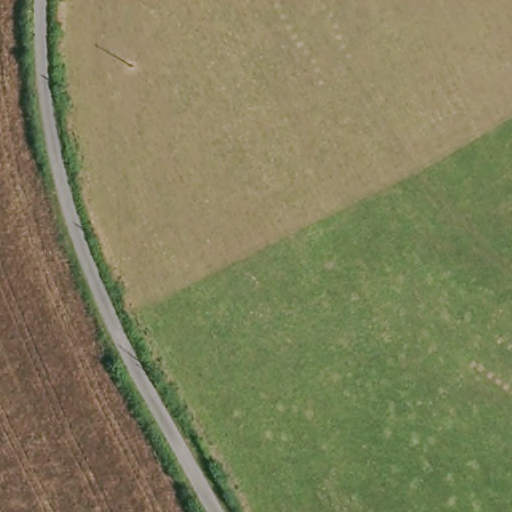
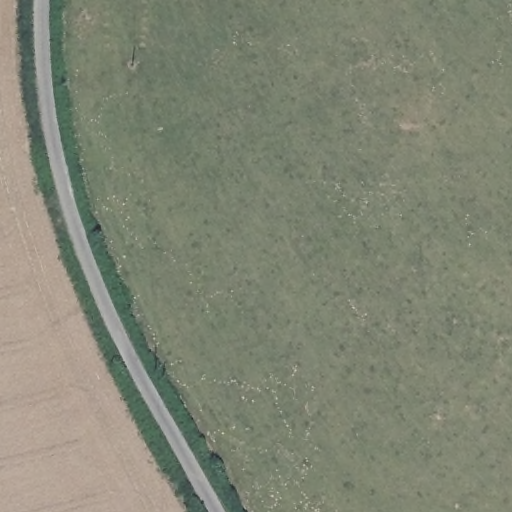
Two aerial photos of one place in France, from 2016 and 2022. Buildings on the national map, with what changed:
[]

